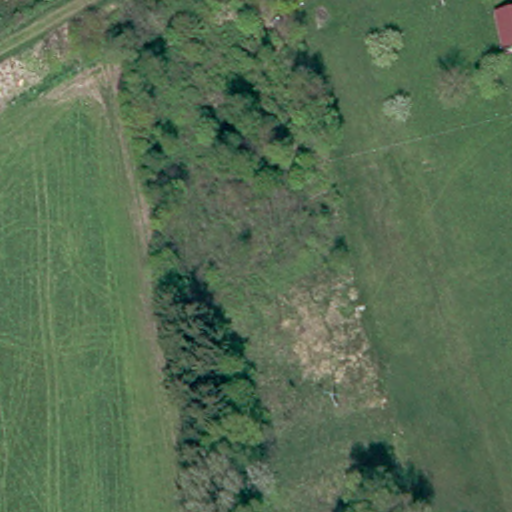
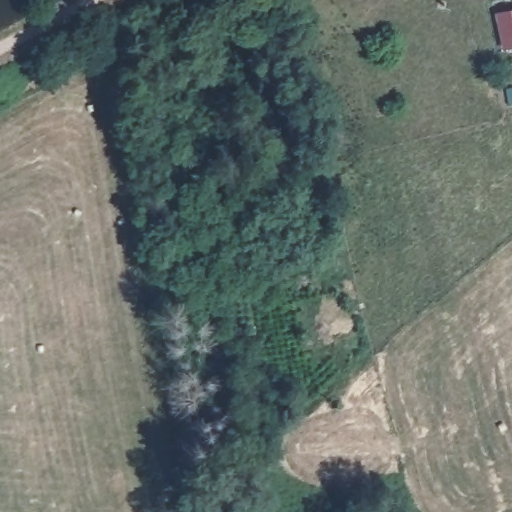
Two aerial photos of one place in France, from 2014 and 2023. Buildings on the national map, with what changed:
unchanged [(509,61),(508,54),(502,23),(512,21),(512,61),(509,61)]

